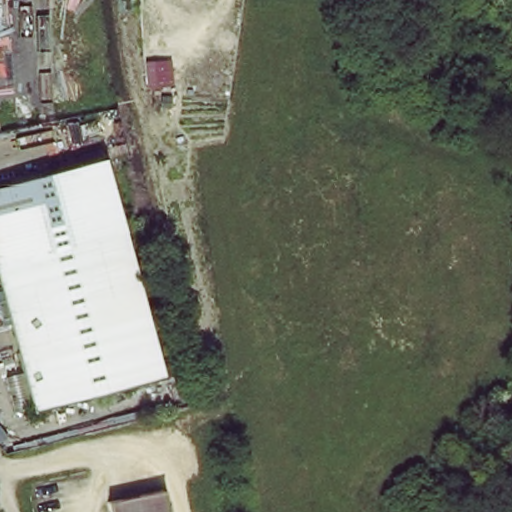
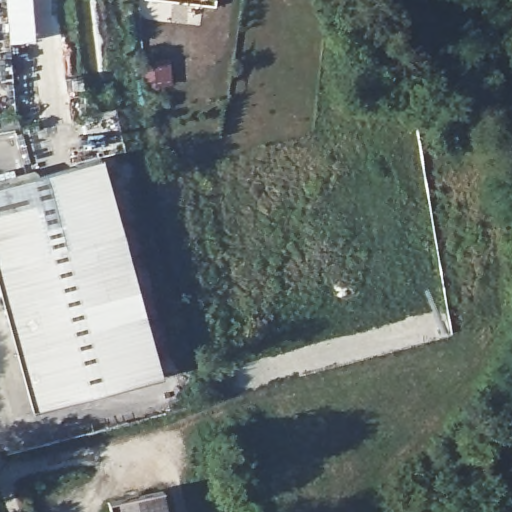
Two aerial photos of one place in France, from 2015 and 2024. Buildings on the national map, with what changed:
new [(10,44),(7,0),(31,0),(35,42),(10,44)]
unchanged [(160,374),(32,410),(0,299),(0,183),(96,155),(160,374)]
unchanged [(169,512),(114,512),(112,501),(165,489),(169,512)]

